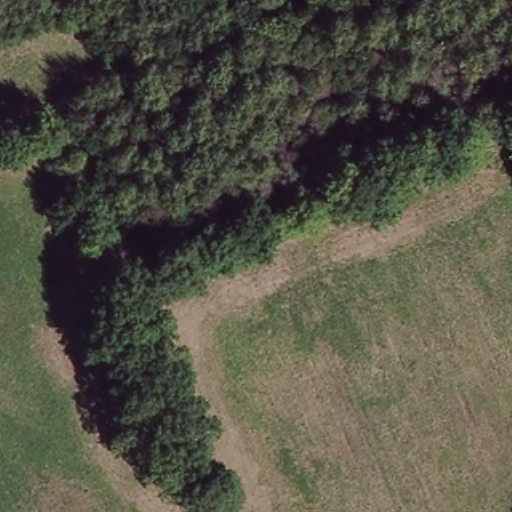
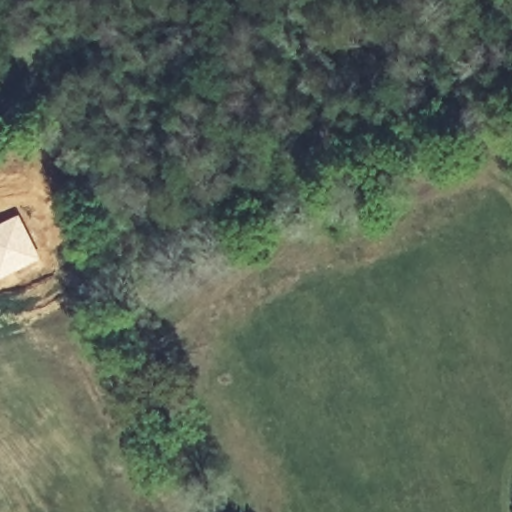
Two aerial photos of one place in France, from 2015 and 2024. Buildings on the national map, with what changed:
new [(40,259),(0,279),(0,222),(18,214),(40,259)]

